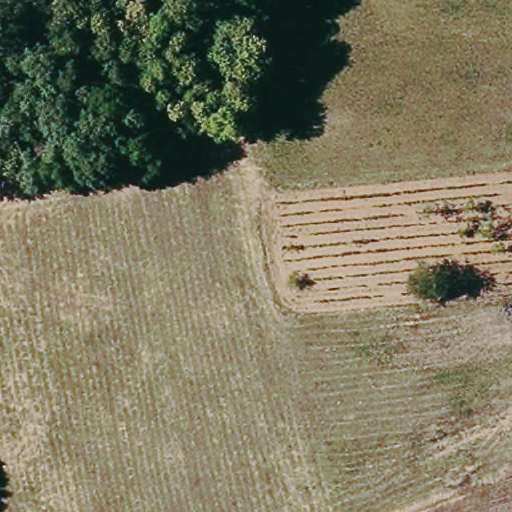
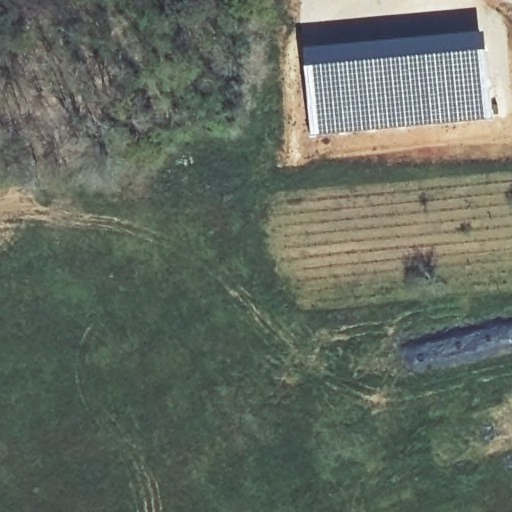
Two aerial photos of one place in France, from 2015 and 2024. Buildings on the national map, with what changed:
new [(484,29),(497,120),(310,135),(302,44),(484,29)]

